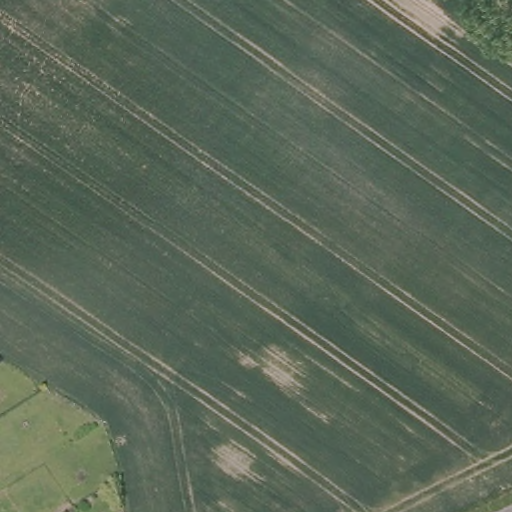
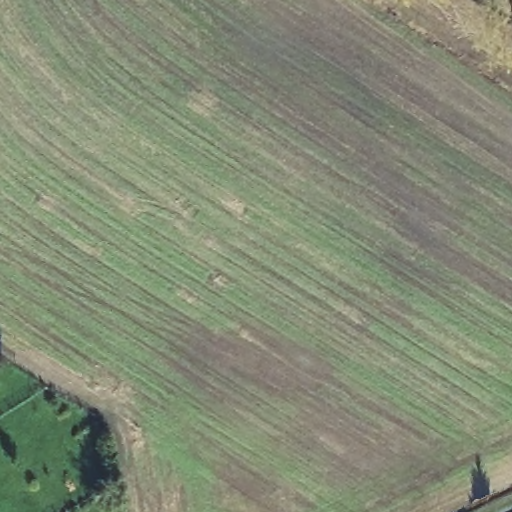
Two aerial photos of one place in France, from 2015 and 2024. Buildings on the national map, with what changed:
[]

